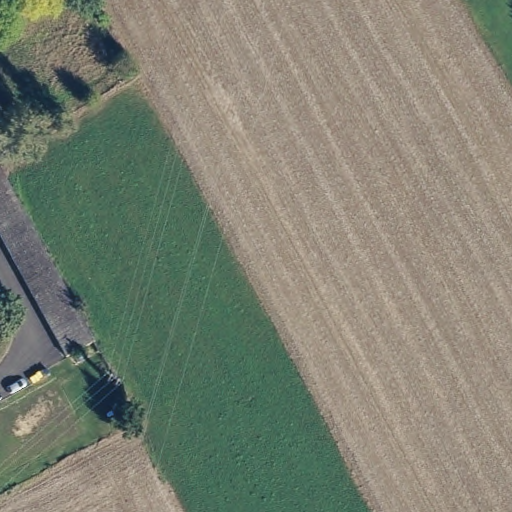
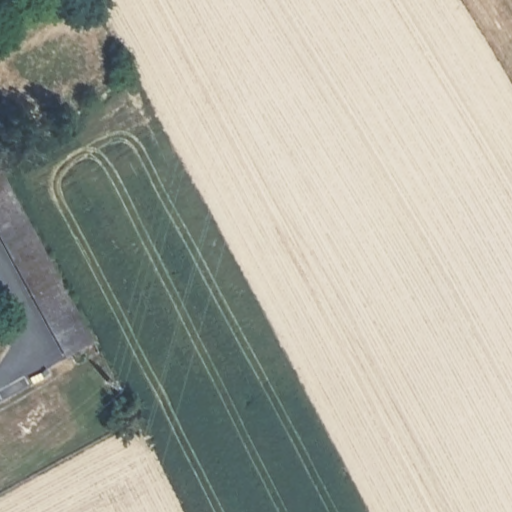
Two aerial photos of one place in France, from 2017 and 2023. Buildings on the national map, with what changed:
unchanged [(62,357),(8,259),(0,244),(0,177),(90,342),(62,357)]

